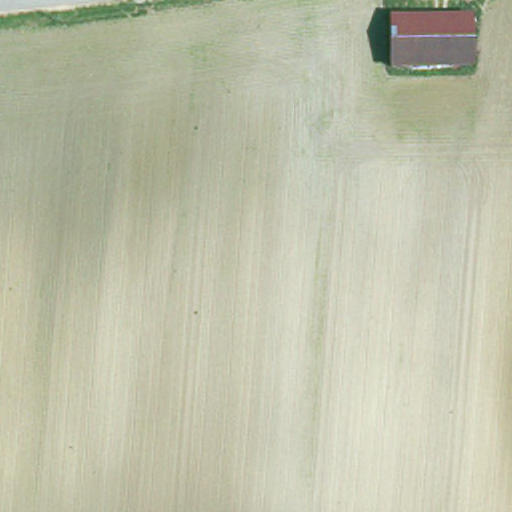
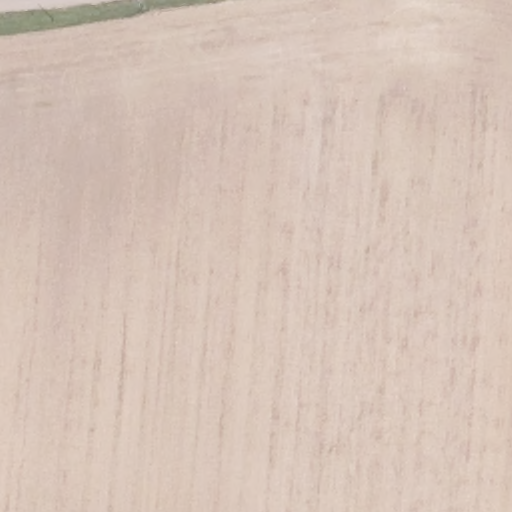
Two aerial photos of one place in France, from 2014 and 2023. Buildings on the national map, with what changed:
demolished [(477,61),(394,63),(394,11),(476,11),(477,61)]

